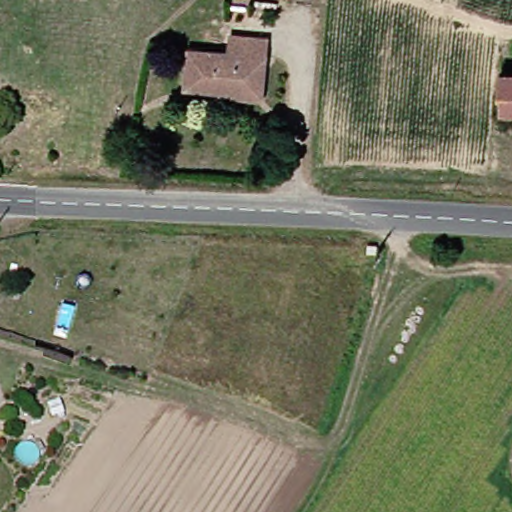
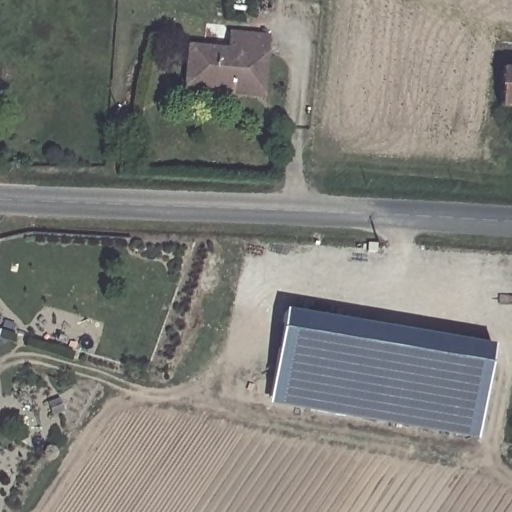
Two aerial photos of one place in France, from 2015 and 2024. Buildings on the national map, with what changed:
unchanged [(172,84),(176,47),(223,51),(224,34),(259,38),(258,50),(243,49),(239,84),(212,81),(211,88),(172,84)]
unchanged [(212,81),(239,84),(243,49),(258,50),(252,98),(232,96),(211,95),(211,88),(212,81)]
unchanged [(494,110),(495,74),(512,73),(512,109),(494,110)]
new [(301,307),(491,348),(471,444),(280,403),(301,307)]

